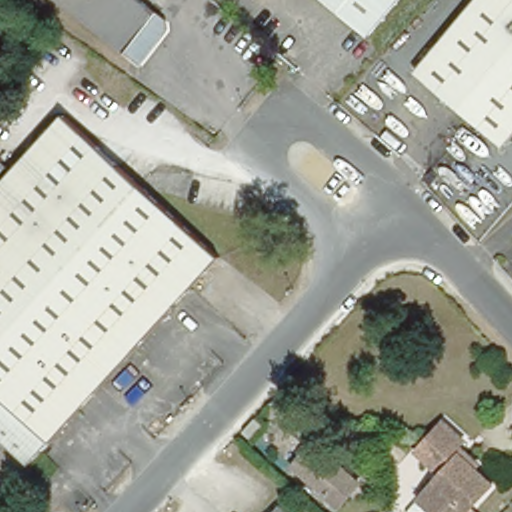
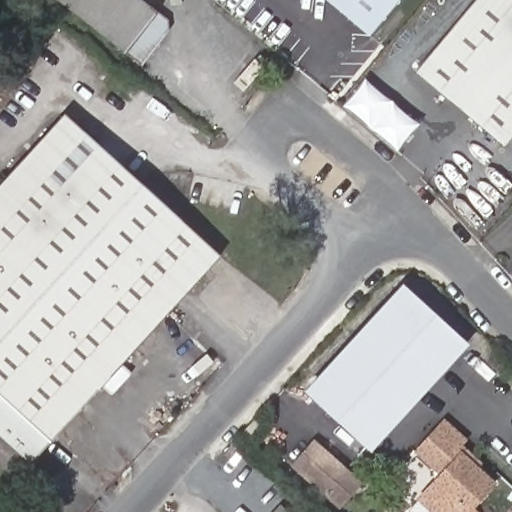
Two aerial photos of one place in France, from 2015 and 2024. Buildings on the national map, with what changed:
unchanged [(154,14),(124,53),(55,0),(136,0),(154,14)]
unchanged [(367,32),(330,0),(395,0),(367,32)]
unchanged [(504,147),(415,72),(475,0),(512,0),(512,138),(504,147)]
unchanged [(154,14),(156,11),(167,20),(168,31),(141,66),(124,53),(154,14)]
unchanged [(0,437),(0,185),(62,116),(218,258),(29,464),(0,437)]
new [(401,284),(468,345),(369,452),(303,392),(401,284)]
unchanged [(418,495),(441,470),(417,447),(443,417),(463,436),(459,440),(479,459),(475,463),(492,480),(471,503),(481,512),(411,512),(407,508),(418,495)]
unchanged [(337,506),(325,495),(293,466),(312,444),(345,473),(357,484),(337,506)]
unchanged [(282,512),(274,512),(277,508),(282,512)]

